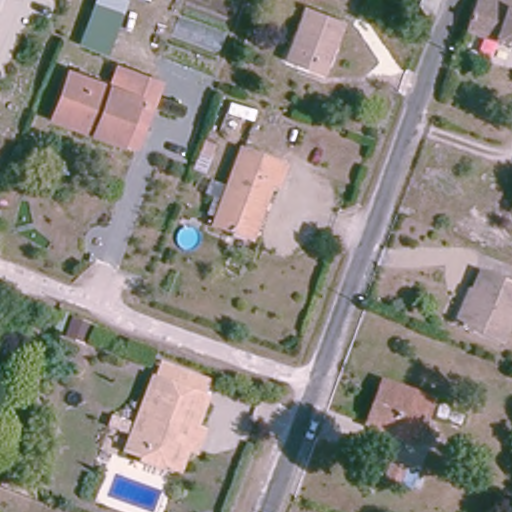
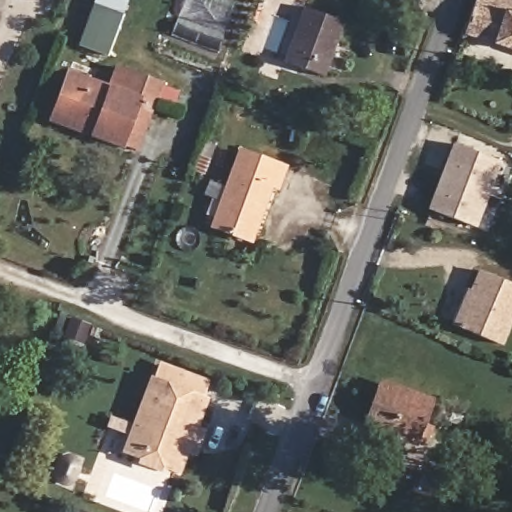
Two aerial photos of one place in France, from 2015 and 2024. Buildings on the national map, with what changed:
unchanged [(475,0),(512,0),(512,50),(464,34),(475,0)]
unchanged [(347,19),(327,72),(285,57),(305,3),(347,19)]
unchanged [(81,46),(91,17),(116,27),(106,55),(81,46)]
unchanged [(115,65),(161,84),(137,151),(127,149),(144,95),(106,83),(115,65)]
unchanged [(127,149),(49,120),(68,70),(106,83),(144,95),(127,149)]
new [(477,227),(427,208),(453,142),(502,161),(477,227)]
unchanged [(216,225),(244,150),(291,166),(284,187),(273,183),(253,239),(216,225)]
unchanged [(512,284),(512,324),(503,344),(460,324),(485,271),(512,284)]
unchanged [(202,451),(192,448),(185,470),(128,451),(152,380),(159,382),(163,369),(207,382),(202,397),(208,399),(199,426),(209,429),(202,451)]
unchanged [(420,439),(386,425),(374,420),(388,381),(400,385),(435,400),(420,439)]

